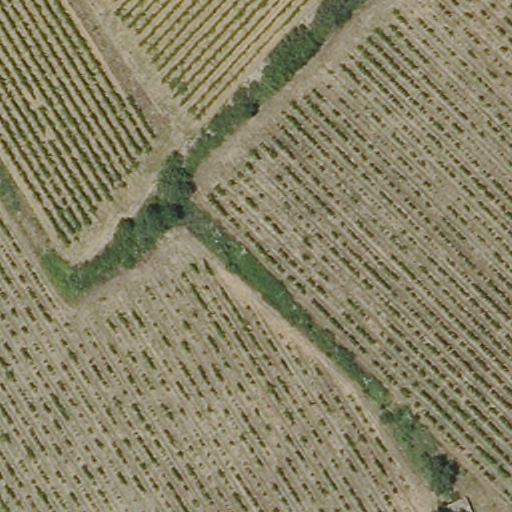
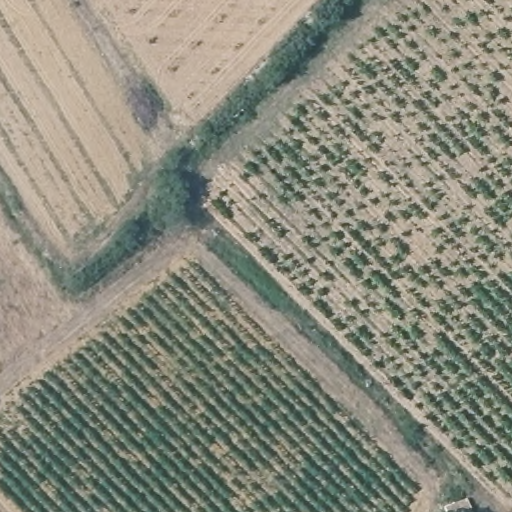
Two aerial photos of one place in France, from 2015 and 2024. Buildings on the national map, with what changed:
unchanged [(440,506),(457,498),(461,512),(442,512),(440,506)]

